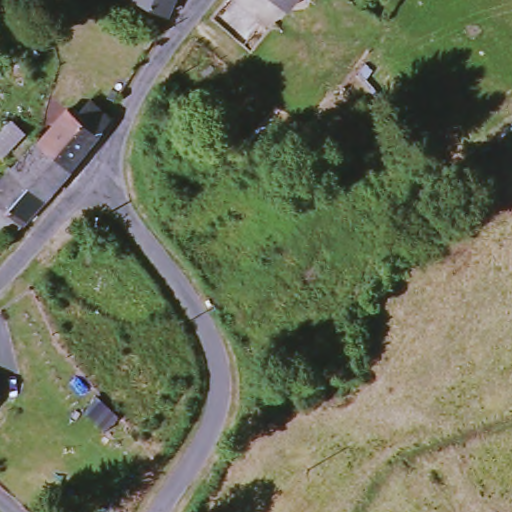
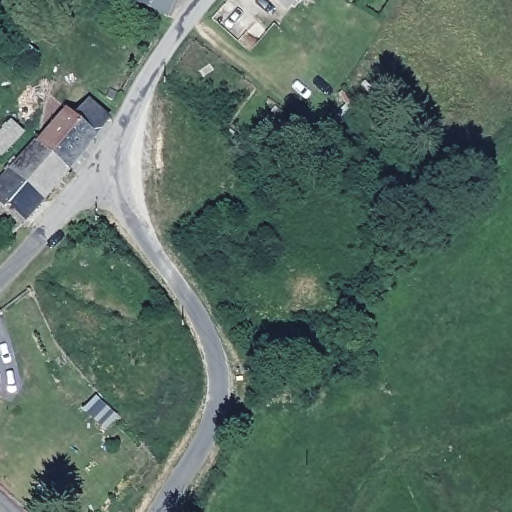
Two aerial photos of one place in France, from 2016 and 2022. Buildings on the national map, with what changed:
unchanged [(141,0),(179,0),(173,15),(141,0)]
unchanged [(289,0),(306,0),(299,8),(289,0)]
unchanged [(48,147),(57,136),(73,117),(83,124),(97,107),(113,120),(117,125),(78,169),(48,147)]
unchanged [(0,145),(0,120),(1,119),(14,130),(0,145)]
unchanged [(48,202),(16,172),(43,142),(48,147),(78,169),(48,202)]
unchanged [(0,190),(16,172),(48,202),(24,228),(13,241),(0,228),(0,190)]

